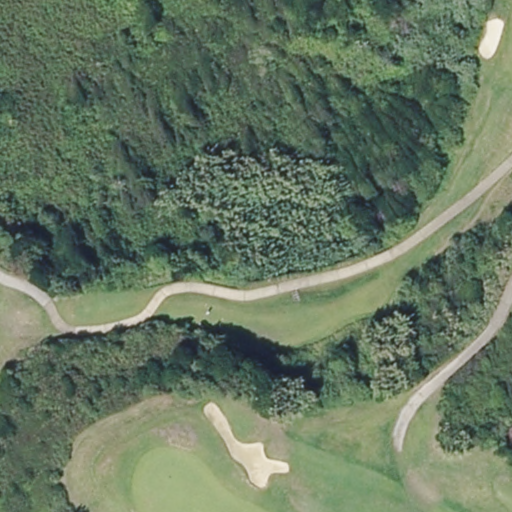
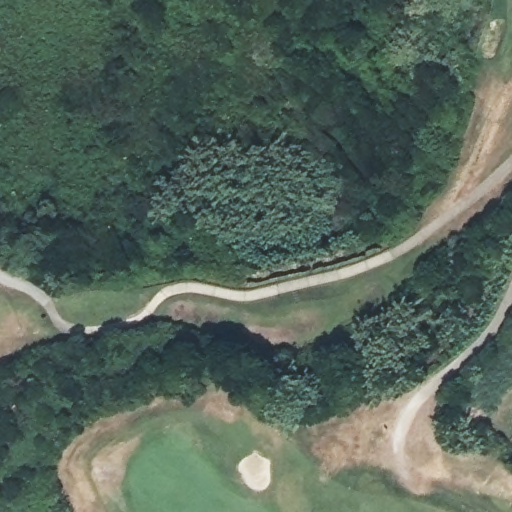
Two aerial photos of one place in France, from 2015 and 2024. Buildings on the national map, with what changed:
unchanged [(496,460),(512,438),(512,472),(496,460)]

